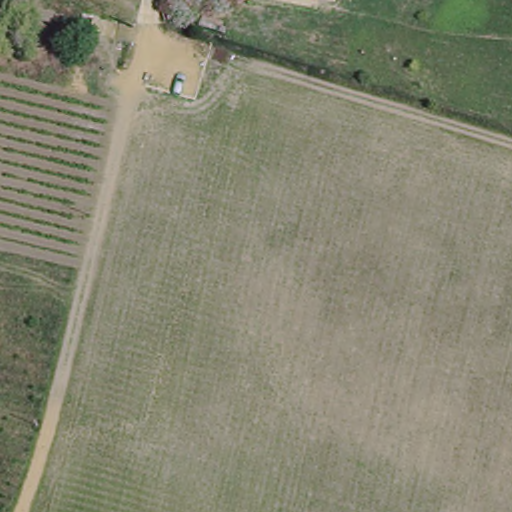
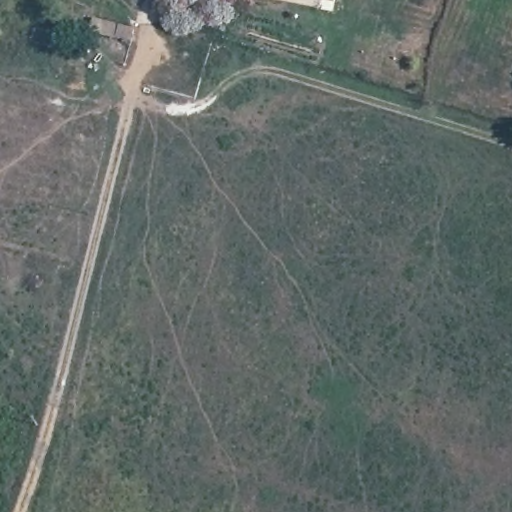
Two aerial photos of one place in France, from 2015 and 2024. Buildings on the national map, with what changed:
unchanged [(329,0),(336,0),(335,1),(329,0)]
unchanged [(143,42),(131,40),(134,27),(147,29),(143,42)]

